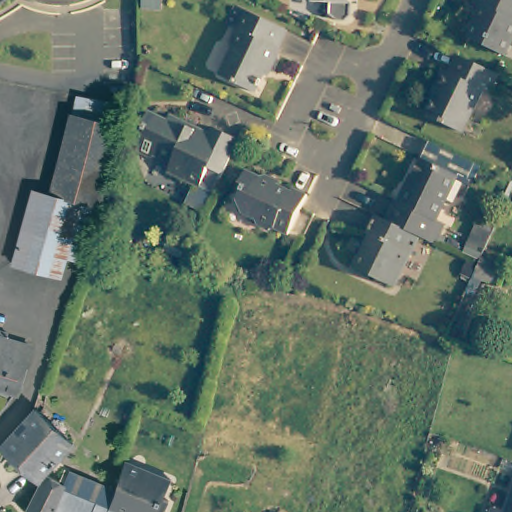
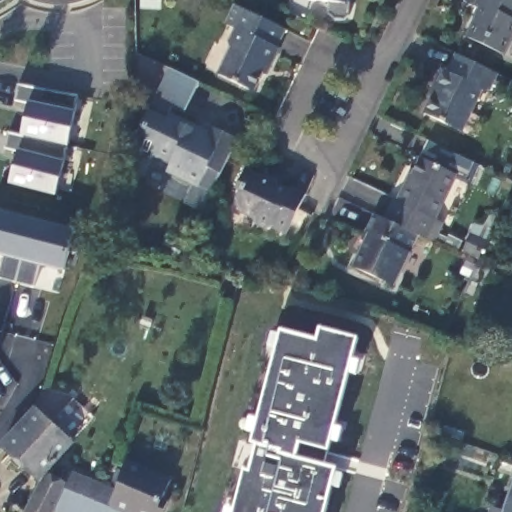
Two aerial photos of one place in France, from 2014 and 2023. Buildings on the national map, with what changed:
unchanged [(57,3),(36,0),(35,0),(80,0),(57,3)]
unchanged [(348,2),(310,0),(349,0),(348,2)]
unchanged [(512,37),(504,54),(468,37),(484,5),(478,2),(479,0),(512,0),(512,37)]
unchanged [(280,48),(267,75),(263,73),(254,92),(219,75),(231,49),(229,42),(236,29),(228,25),(237,5),(285,28),(277,46),(280,48)]
unchanged [(438,87),(435,86),(443,69),(448,71),(457,53),(498,73),(488,92),(483,89),(462,131),(426,113),(438,87)]
new [(170,117),(151,108),(170,68),(200,82),(184,112),(174,108),(172,112),(170,117)]
new [(18,151),(5,148),(9,131),(21,134),(28,103),(15,99),(19,84),(78,95),(55,193),(10,182),(18,151)]
unchanged [(200,186),(168,171),(172,163),(154,155),(143,157),(137,147),(144,134),(140,132),(151,108),(170,117),(172,112),(201,126),(199,130),(207,135),(212,126),(239,139),(226,165),(217,184),(216,187),(213,192),(200,186)]
demolished [(72,118),(73,118),(119,130),(120,130),(100,211),(52,198),(72,118)]
unchanged [(429,242),(413,234),(381,219),(391,199),(393,200),(401,183),(403,184),(417,157),(452,175),(432,218),(438,222),(429,242)]
unchanged [(307,194),(301,206),(287,233),(274,227),(268,229),(257,223),(255,217),(241,211),(237,200),(242,190),(237,187),(246,169),(291,190),(292,187),(307,194)]
demolished [(15,269),(35,194),(52,198),(100,211),(106,213),(92,268),(67,262),(63,282),(15,269)]
unchanged [(395,272),(393,271),(387,284),(350,266),(366,234),(361,232),(370,213),(381,219),(413,234),(395,272)]
unchanged [(465,292),(472,277),(476,268),(477,263),(481,257),(498,261),(496,272),(492,282),(481,279),(473,296),(465,292)]
new [(251,471),(258,444),(252,442),(282,331),(317,341),(320,329),(357,339),(330,449),(326,466),(337,469),(326,512),(235,512),(245,469),(251,471)]
unchanged [(7,332),(5,338),(30,345),(15,394),(0,390),(0,330),(7,332)]
unchanged [(0,449),(0,443),(9,433),(15,427),(31,409),(69,443),(41,474),(61,483),(66,471),(108,489),(102,502),(101,505),(87,499),(65,489),(59,487),(57,492),(50,510),(50,511),(50,512),(24,512),(37,483),(0,449)]
unchanged [(159,500),(164,502),(160,512),(128,512),(119,508),(117,512),(50,512),(50,511),(50,510),(57,492),(59,487),(65,489),(87,499),(101,505),(106,507),(106,505),(112,491),(122,462),(167,481),(159,500)]
unchanged [(512,512),(505,512),(512,494),(512,512)]
unchanged [(493,512),(492,512),(492,511),(493,512)]

